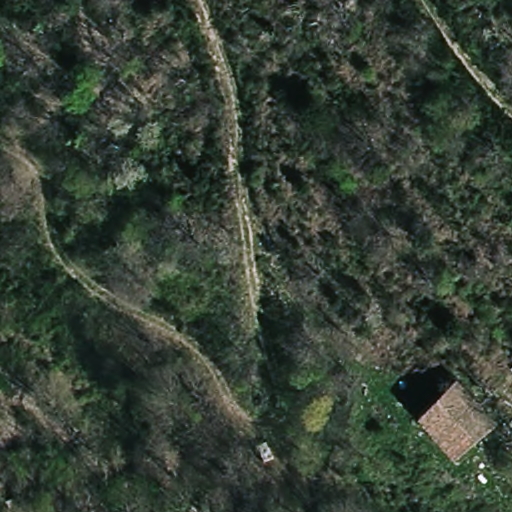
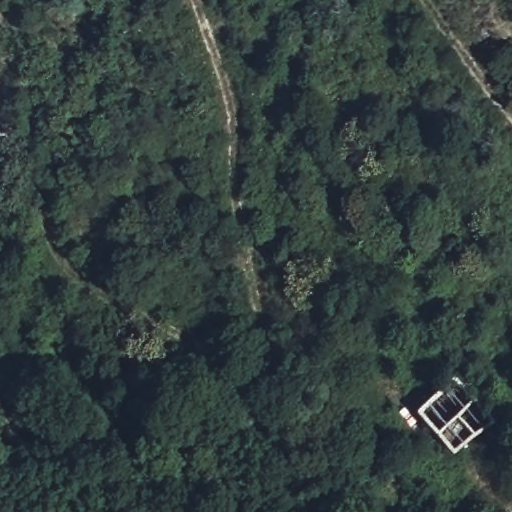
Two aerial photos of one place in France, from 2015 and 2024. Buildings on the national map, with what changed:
unchanged [(461,372),(503,421),(457,461),(417,415),(461,372)]

